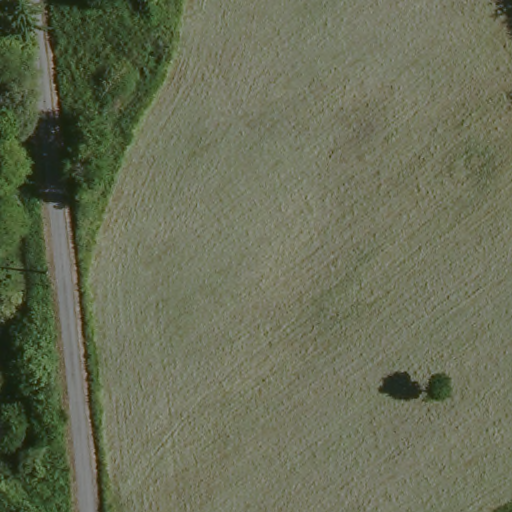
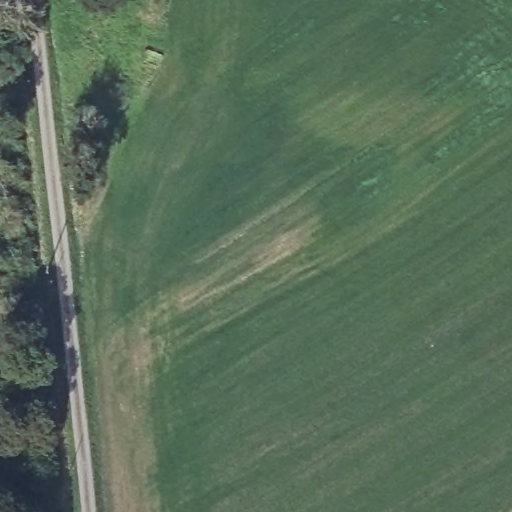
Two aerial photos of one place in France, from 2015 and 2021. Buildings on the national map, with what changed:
unchanged [(9,0),(0,1),(0,0),(9,0)]

